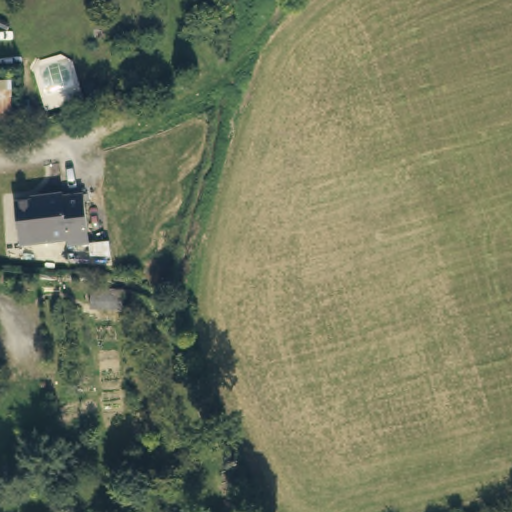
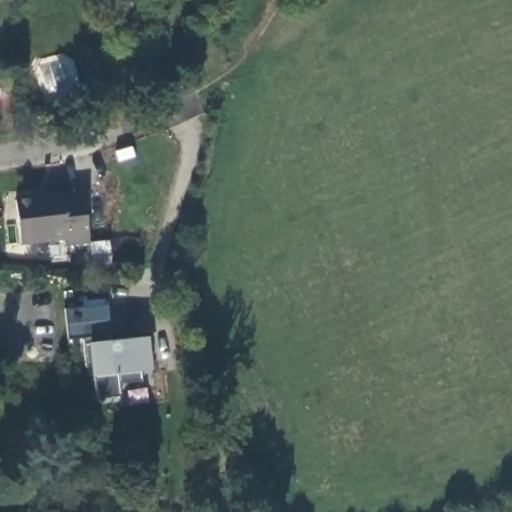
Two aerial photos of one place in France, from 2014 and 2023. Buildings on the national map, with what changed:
unchanged [(39,194),(38,191),(58,188),(59,191),(79,189),(85,238),(63,241),(62,235),(16,241),(11,197),(39,194)]
demolished [(121,282),(121,302),(88,302),(88,282),(121,282)]
new [(108,307),(117,340),(148,336),(152,370),(145,370),(142,381),(120,384),(121,396),(97,397),(93,377),(89,342),(82,337),(67,338),(67,311),(108,307)]

